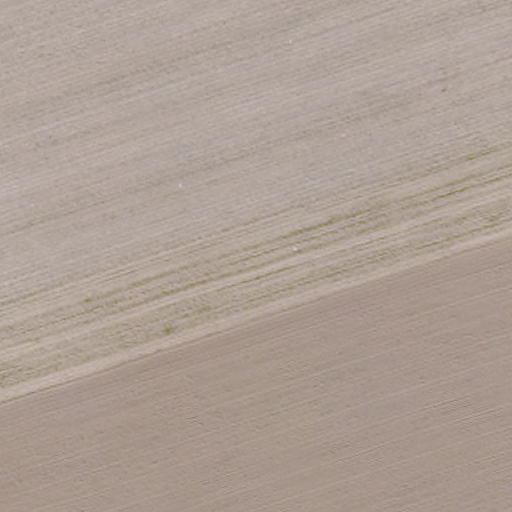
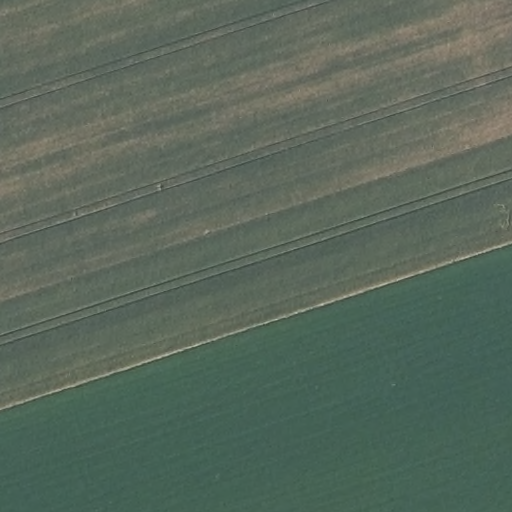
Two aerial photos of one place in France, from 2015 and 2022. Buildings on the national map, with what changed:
[]

